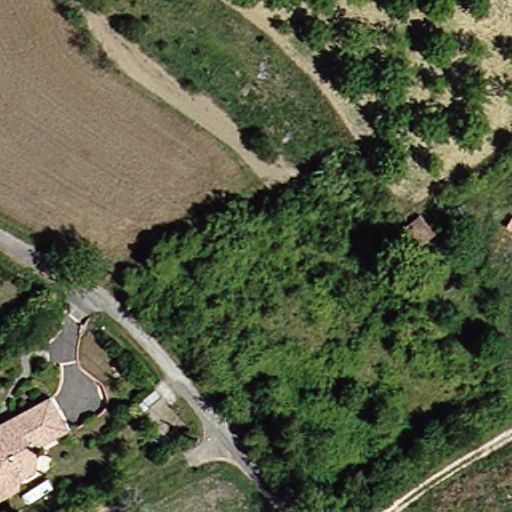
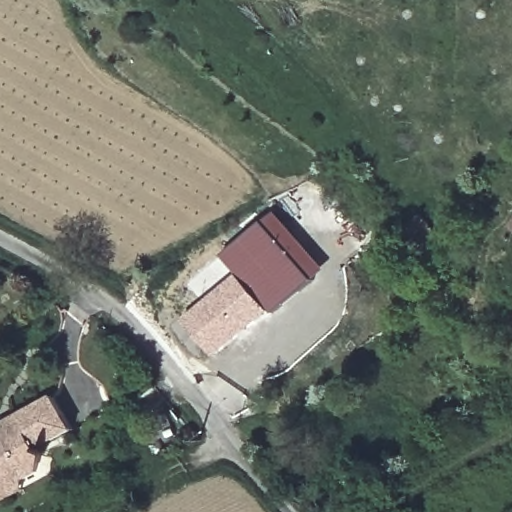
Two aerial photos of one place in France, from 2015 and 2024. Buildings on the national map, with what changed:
new [(320,272),(270,317),(222,261),(274,217),(320,272)]
new [(433,238),(418,248),(404,228),(419,218),(433,238)]
demolished [(426,239),(411,249),(397,229),(412,219),(426,239)]
new [(267,313),(215,358),(183,320),(236,277),(267,313)]
unchanged [(31,448),(41,468),(8,485),(12,494),(0,500),(0,421),(48,397),(66,430),(31,448)]

